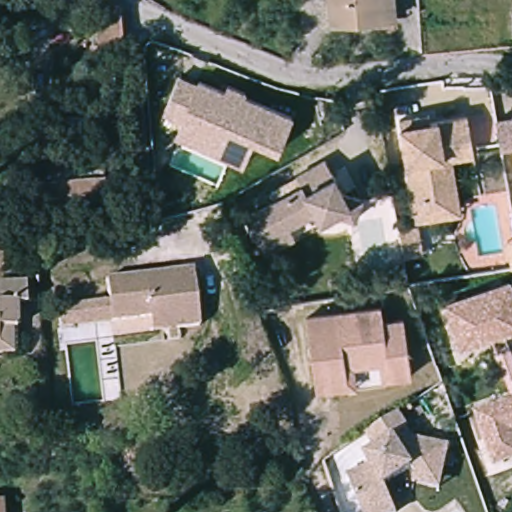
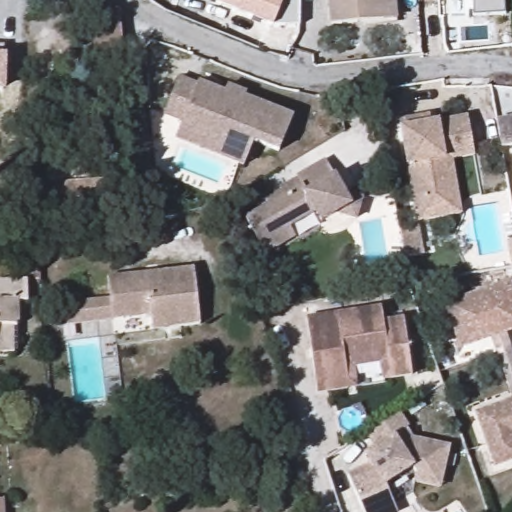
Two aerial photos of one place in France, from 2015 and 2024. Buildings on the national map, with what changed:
new [(217,1),(218,0),(299,0),(299,25),(273,25),(217,1)]
unchanged [(339,25),(338,0),(391,0),(392,23),(339,25)]
new [(474,0),(504,0),(505,14),(474,15),(474,0)]
unchanged [(124,46),(96,46),(89,7),(122,18),(124,46)]
new [(0,91),(0,45),(5,45),(4,53),(8,53),(6,91),(0,91)]
unchanged [(185,85),(203,92),(204,89),(230,100),(232,95),(248,101),(295,121),(280,157),(255,146),(251,155),(188,128),(170,120),(185,85)]
unchanged [(435,117),(436,125),(472,119),(479,151),(448,156),(457,197),(420,204),(417,193),(405,122),(424,119),(435,117)]
unchanged [(502,119),(512,117),(512,146),(507,146),(504,132),(502,119)]
unchanged [(251,155),(244,171),(181,144),(188,128),(251,155)]
unchanged [(457,197),(448,156),(479,151),(480,158),(456,162),(467,216),(424,224),(420,204),(457,197)]
unchanged [(282,206),(310,190),(304,180),(332,165),(350,196),(367,200),(363,220),(344,216),(330,225),(324,215),(297,230),(303,240),(274,256),(258,227),(254,222),(282,206)]
unchanged [(30,180),(97,171),(99,184),(102,210),(32,220),(31,193),(30,180)]
unchanged [(422,228),(428,257),(410,260),(410,257),(405,231),(422,228)]
unchanged [(11,261),(0,263),(0,231),(7,230),(11,261)]
new [(509,246),(512,246),(512,262),(512,260),(509,246)]
unchanged [(145,313),(109,316),(71,320),(69,300),(107,297),(108,274),(193,267),(199,322),(178,325),(149,329),(145,313)]
unchanged [(512,333),(460,351),(442,303),(511,279),(512,283),(512,333)]
unchanged [(18,285),(19,338),(0,340),(0,287),(18,285)]
unchanged [(412,377),(382,382),(379,365),(355,367),(357,390),(316,395),(304,316),(381,305),(382,320),(403,317),(412,377)]
unchanged [(472,412),(512,399),(512,463),(493,470),(472,412)]
unchanged [(440,490),(414,485),(413,469),(383,486),(396,512),(361,512),(346,472),(367,463),(362,454),(373,447),(365,433),(400,413),(409,428),(395,437),(400,445),(413,437),(449,445),(440,490)]

